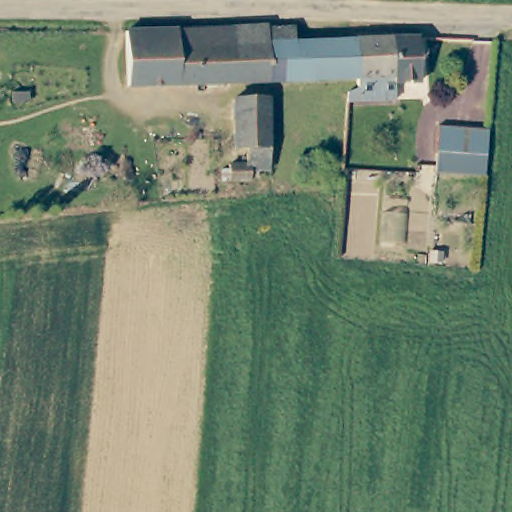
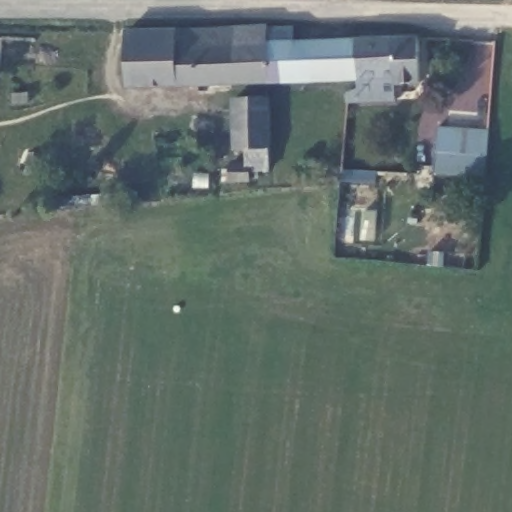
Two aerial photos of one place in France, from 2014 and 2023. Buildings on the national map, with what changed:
unchanged [(132,88),(131,30),(272,30),(273,82),(132,88)]
unchanged [(272,30),(296,31),(296,45),(360,42),(361,80),(273,82),(272,30)]
unchanged [(351,89),(361,88),(361,80),(360,42),(423,40),(424,84),(399,85),(399,101),(350,104),(351,89)]
unchanged [(256,174),(256,181),(222,182),(222,170),(227,170),(227,164),(244,164),(244,150),(234,150),(234,102),(267,102),(267,174),(256,174)]
unchanged [(437,139),(486,144),(484,169),(435,165),(437,139)]
unchanged [(298,174),(294,161),(310,161),(306,174),(298,174)]

